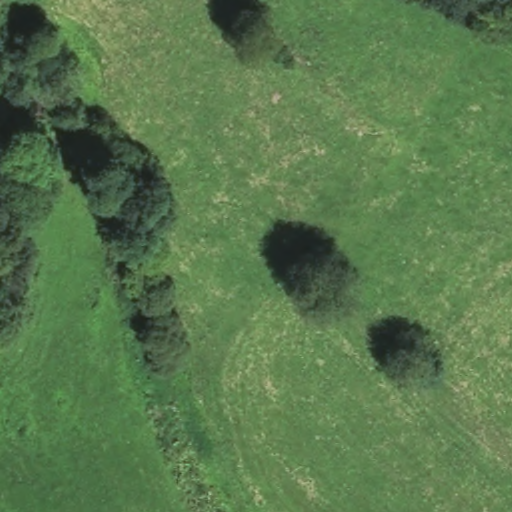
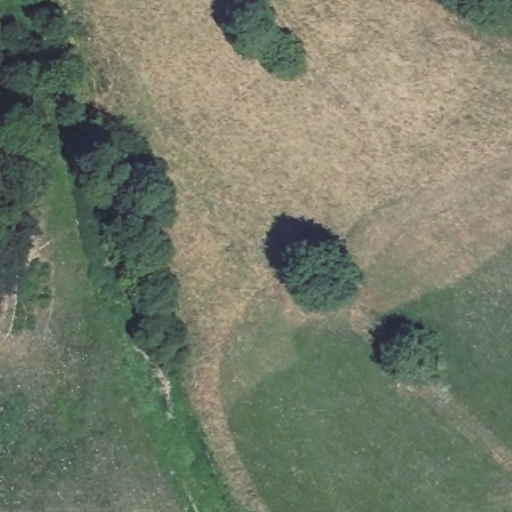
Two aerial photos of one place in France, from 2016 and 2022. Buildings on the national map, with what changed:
[]

